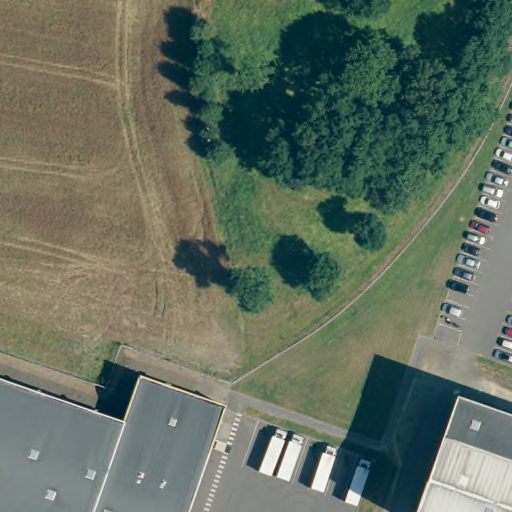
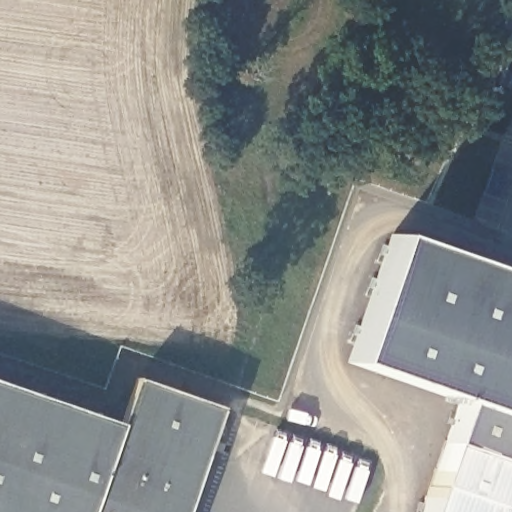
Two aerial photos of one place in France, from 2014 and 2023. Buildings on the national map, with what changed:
new [(346,368),(395,236),(512,277),(512,426),(462,408),(346,368)]
unchanged [(225,410),(189,512),(0,512),(0,384),(122,427),(138,380),(146,383),(225,410)]
unchanged [(512,512),(425,512),(462,408),(512,426),(512,512)]

